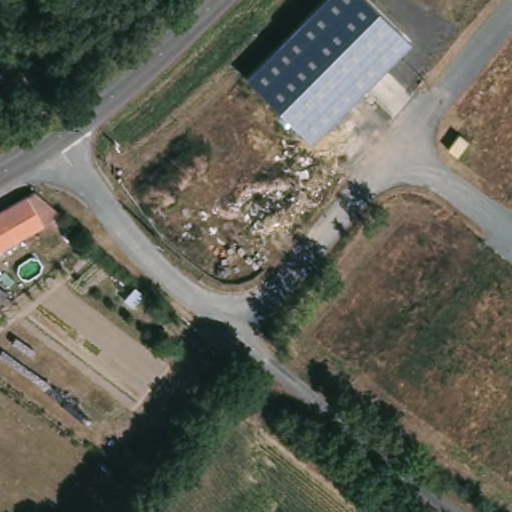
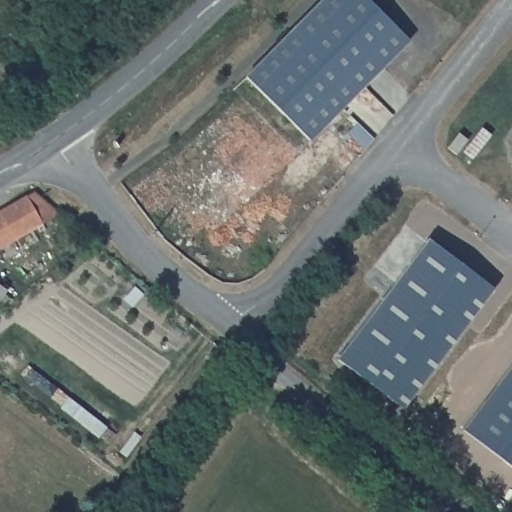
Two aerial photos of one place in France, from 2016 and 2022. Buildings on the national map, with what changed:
unchanged [(320,0),(368,0),(410,39),(310,141),(245,77),(320,0)]
unchanged [(0,214),(31,199),(58,221),(0,247),(0,214)]
new [(338,357),(427,239),(492,289),(403,407),(338,357)]
new [(512,372),(512,482),(460,441),(512,372)]

